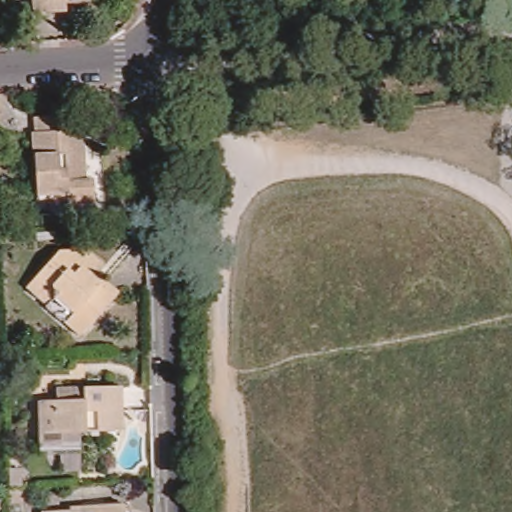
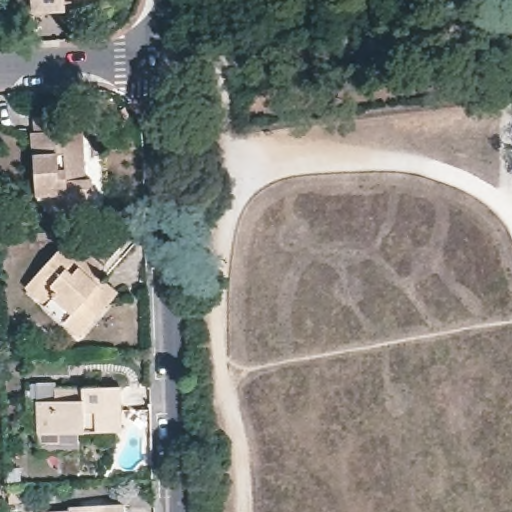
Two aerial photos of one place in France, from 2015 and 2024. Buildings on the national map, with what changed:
unchanged [(31,14),(31,6),(31,0),(91,0),(91,4),(64,5),(65,14),(31,14)]
unchanged [(43,199),(40,136),(44,136),(43,121),(82,118),(82,134),(85,134),(91,134),(93,186),(102,186),(103,213),(57,215),(44,215),(43,199)]
unchanged [(51,302),(29,283),(58,250),(88,248),(113,271),(108,277),(122,291),(96,318),(84,331),(51,302)]
unchanged [(44,443),(43,433),(42,402),(58,401),(58,388),(77,387),(87,386),(124,385),(126,431),(84,432),(83,432),(83,442),(44,443)]
unchanged [(25,483),(26,498),(7,499),(7,484),(25,483)]
unchanged [(77,507),(77,504),(130,502),(130,512),(47,512),(47,509),(77,507)]

